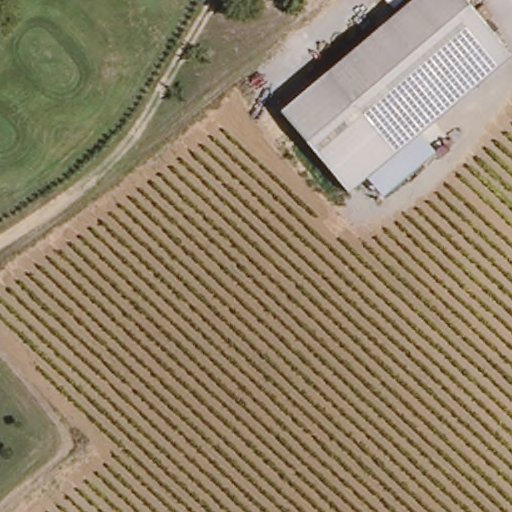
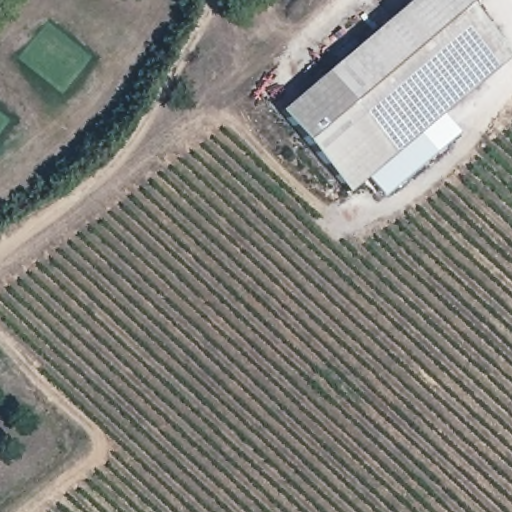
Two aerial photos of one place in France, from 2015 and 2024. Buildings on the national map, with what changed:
unchanged [(331,69),(412,0),(461,0),(511,51),(394,147),(331,69)]
unchanged [(394,147),(416,129),(435,152),(384,197),(367,177),(348,192),(281,109),(331,69),(394,147)]

